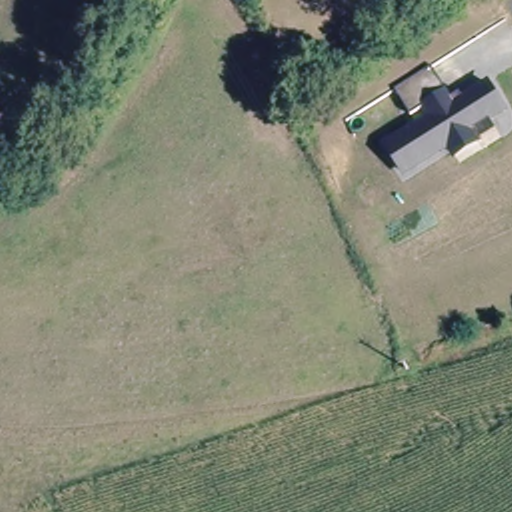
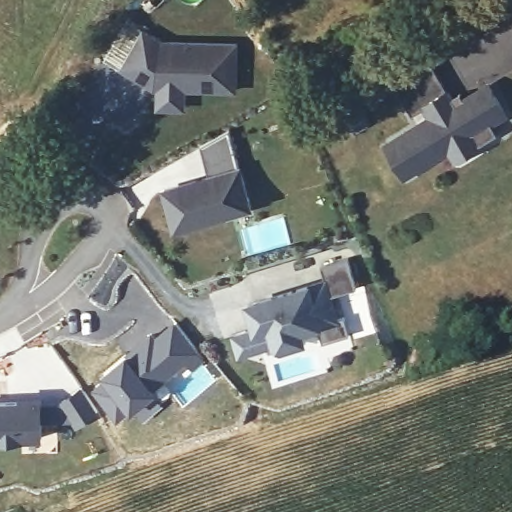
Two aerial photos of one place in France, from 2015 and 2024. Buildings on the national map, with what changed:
new [(157,86),(147,80),(123,66),(145,30),(164,41),(239,43),(238,88),(187,87),(187,106),(161,105),(161,86),(157,86)]
unchanged [(511,115),(493,125),(499,134),(482,144),(485,146),(457,162),(450,152),(405,180),(382,144),(428,118),(423,109),(413,115),(396,89),(433,66),(448,91),(451,90),(455,98),(463,94),(465,96),(491,81),(511,115)]
new [(237,210),(178,227),(167,189),(212,175),(202,144),(231,128),(252,199),(254,205),(237,210)]
new [(351,333),(324,342),(319,324),(302,329),(306,339),(283,347),(277,343),(242,354),(237,335),(258,328),(251,304),(327,280),(323,266),(348,258),(358,288),(332,295),(338,318),(346,315),(351,333)]
new [(110,369),(175,321),(205,356),(191,367),(189,364),(156,392),(164,403),(145,418),(136,407),(117,419),(92,388),(110,369)]
new [(81,389),(97,410),(79,426),(60,402),(81,389)]
new [(0,401),(22,399),(22,396),(41,397),(42,437),(0,439),(0,401)]

